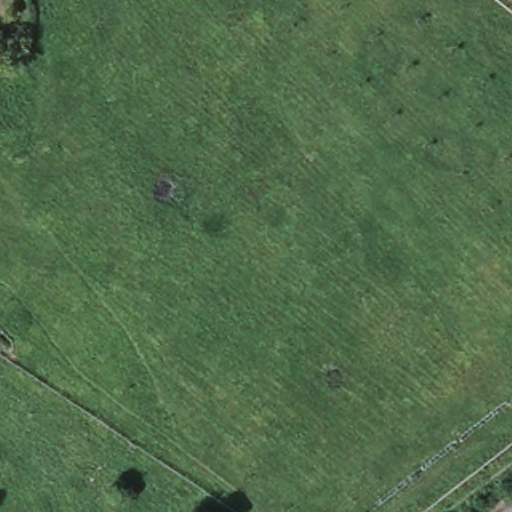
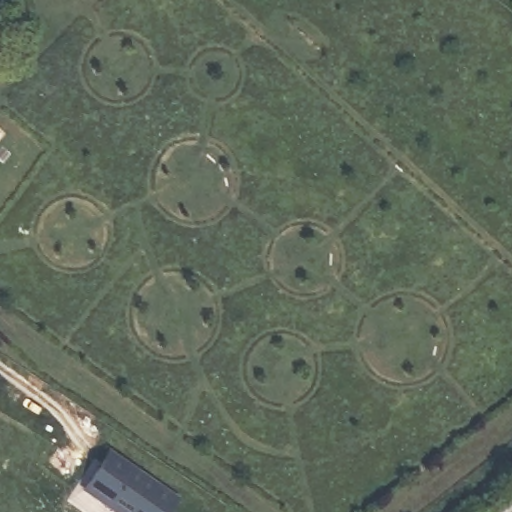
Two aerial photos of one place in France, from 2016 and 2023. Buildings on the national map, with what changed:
new [(179,509),(176,512),(119,512),(85,488),(109,455),(179,509)]

